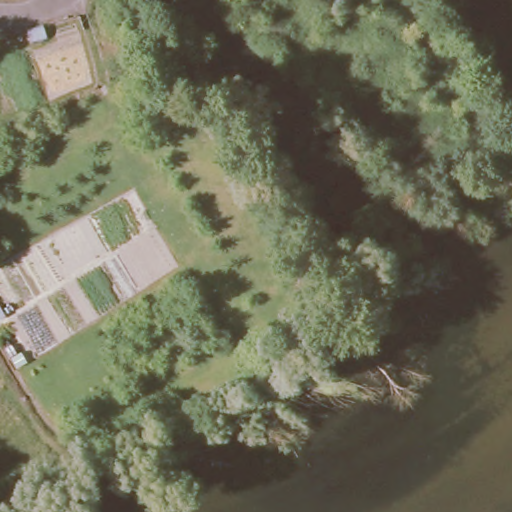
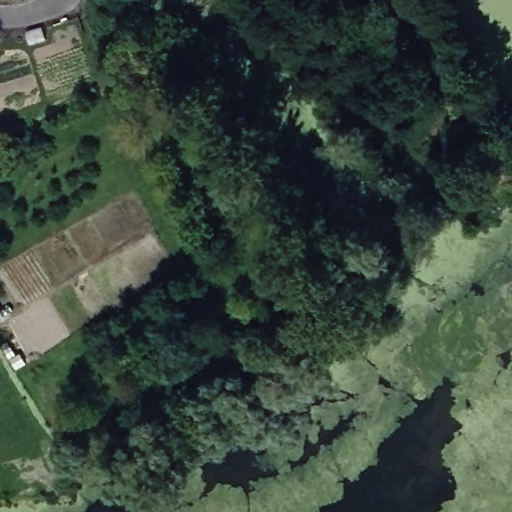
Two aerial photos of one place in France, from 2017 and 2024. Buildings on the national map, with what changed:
unchanged [(2,315),(0,315),(0,312),(2,315)]
unchanged [(10,345),(15,353),(9,356),(5,348),(10,345)]
unchanged [(20,352),(25,362),(16,368),(10,358),(20,352)]

